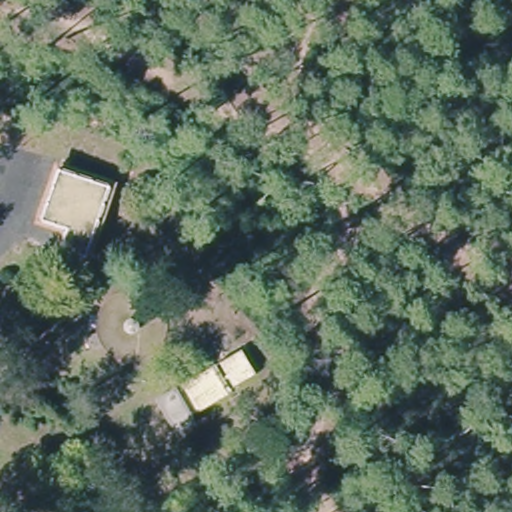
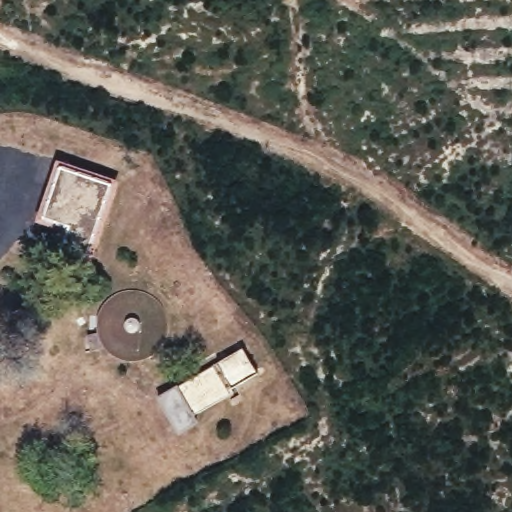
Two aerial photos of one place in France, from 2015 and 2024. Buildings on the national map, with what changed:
unchanged [(85,258),(58,250),(66,227),(39,217),(56,167),(111,186),(85,258)]
unchanged [(258,372),(231,387),(235,393),(193,417),(196,423),(177,434),(158,398),(246,348),(258,372)]

